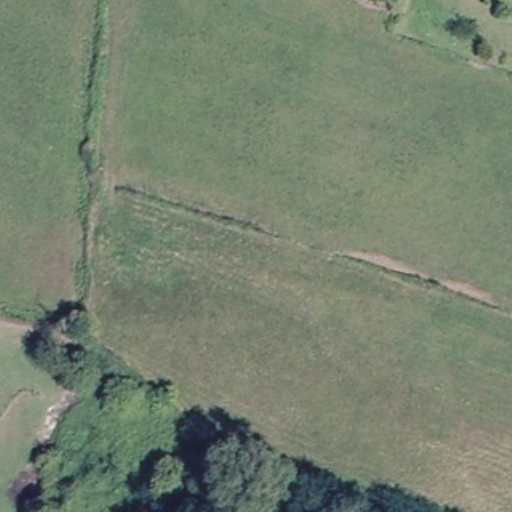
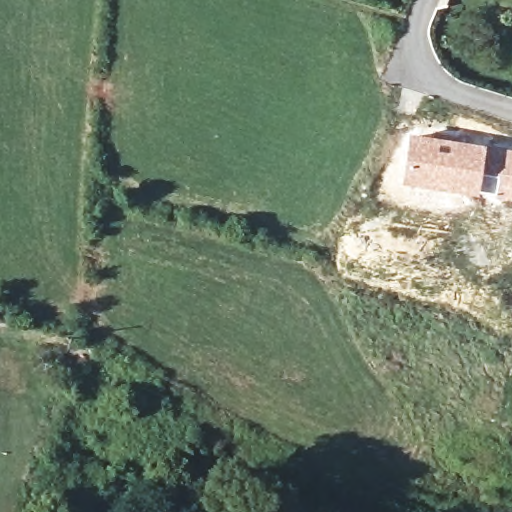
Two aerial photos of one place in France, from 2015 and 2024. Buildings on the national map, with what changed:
new [(409,133),(487,144),(477,192),(477,196),(401,183),(409,133)]
new [(487,144),(512,148),(512,200),(477,192),(487,144)]

